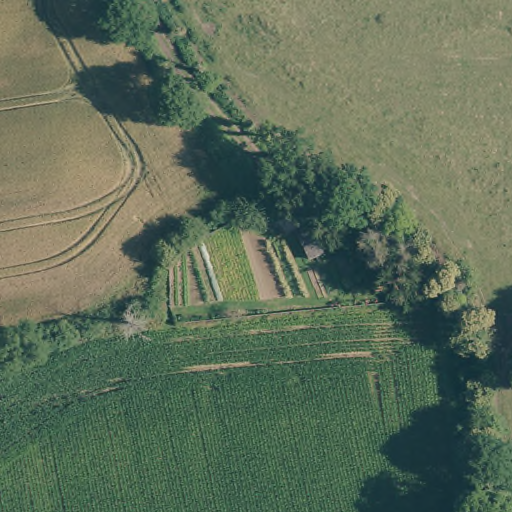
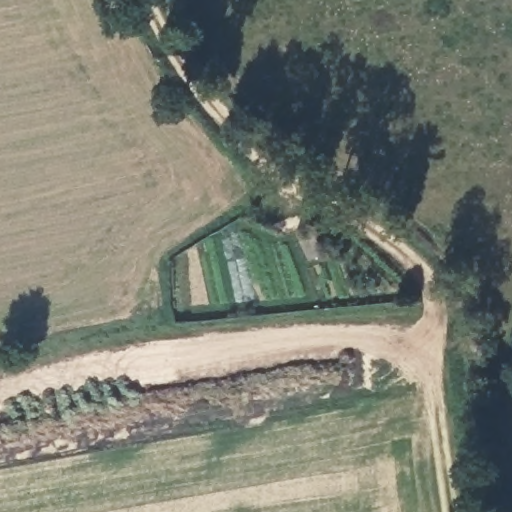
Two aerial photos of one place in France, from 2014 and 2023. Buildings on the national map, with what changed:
unchanged [(310,220),(324,250),(310,255),(296,227),(310,220)]

